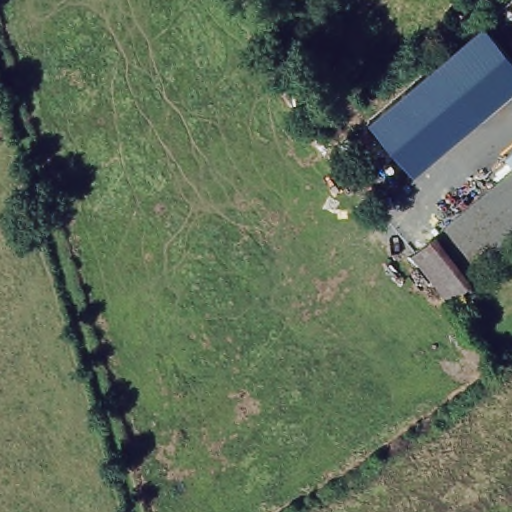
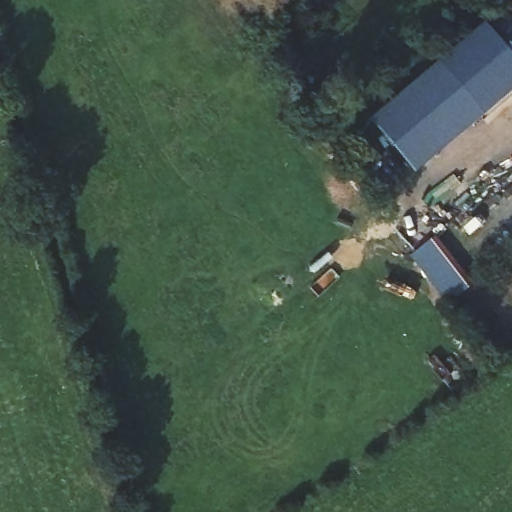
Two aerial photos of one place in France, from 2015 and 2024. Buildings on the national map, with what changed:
unchanged [(483,12),(512,46),(512,80),(491,98),(472,114),(459,99),(426,60),(483,12)]
unchanged [(459,99),(472,114),(414,162),(409,156),(369,108),(426,60),(459,99)]
unchanged [(433,234),(469,285),(447,302),(408,255),(433,234)]

